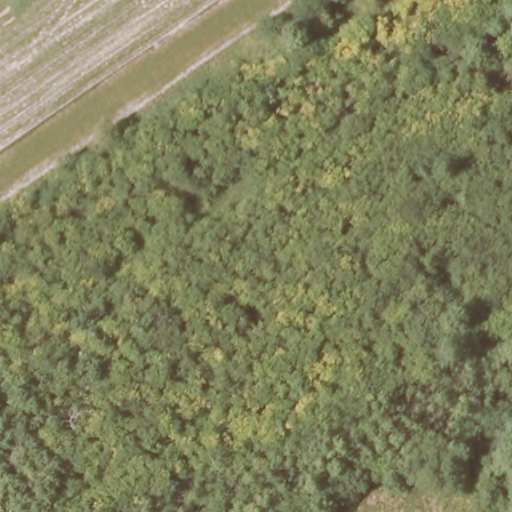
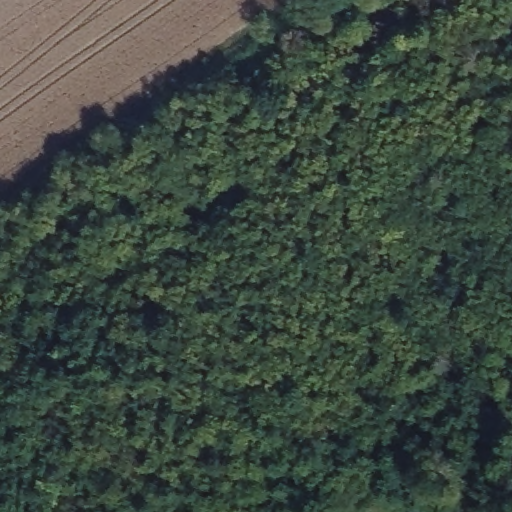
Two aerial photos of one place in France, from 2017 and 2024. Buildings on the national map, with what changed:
[]

